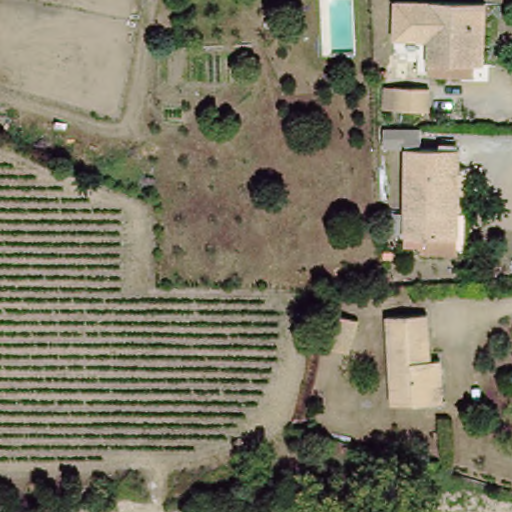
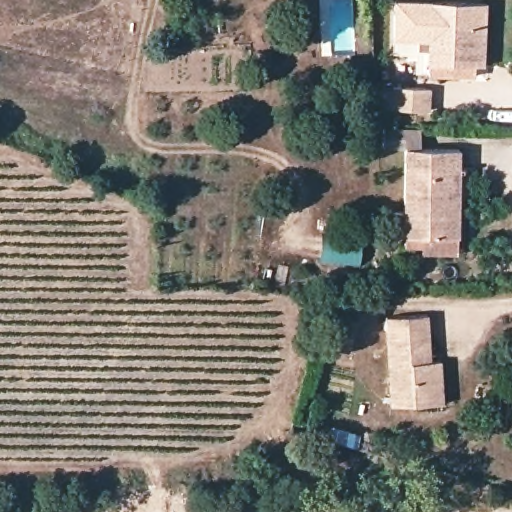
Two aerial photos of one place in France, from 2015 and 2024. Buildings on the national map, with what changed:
unchanged [(432,61),(433,39),(399,37),(401,0),(435,0),(477,3),(475,21),(482,21),(480,64),(480,75),(432,72),(432,61)]
unchanged [(423,91),(422,115),(387,113),(387,89),(423,91)]
unchanged [(407,252),(405,235),(402,151),(459,151),(461,170),(460,213),(460,234),(462,251),(407,252)]
unchanged [(413,402),(390,404),(387,319),(430,316),(432,360),(442,360),(442,377),(444,402),(413,402)]
unchanged [(333,318),(358,324),(348,358),(323,351),(333,318)]

